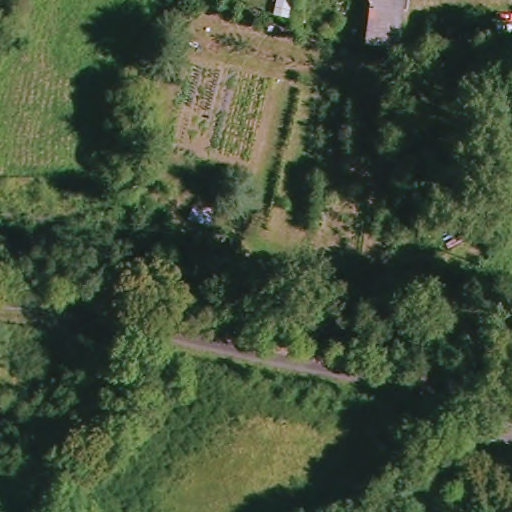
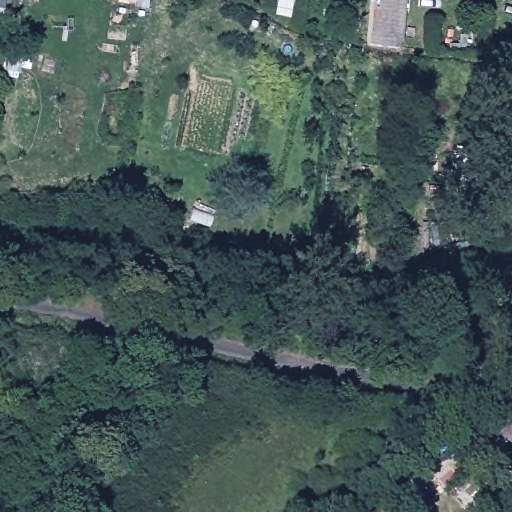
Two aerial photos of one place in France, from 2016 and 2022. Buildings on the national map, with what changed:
unchanged [(369,0),(401,0),(393,51),(381,49),(362,43),(369,0)]
unchanged [(509,423),(512,424),(512,444),(505,443),(509,423)]

